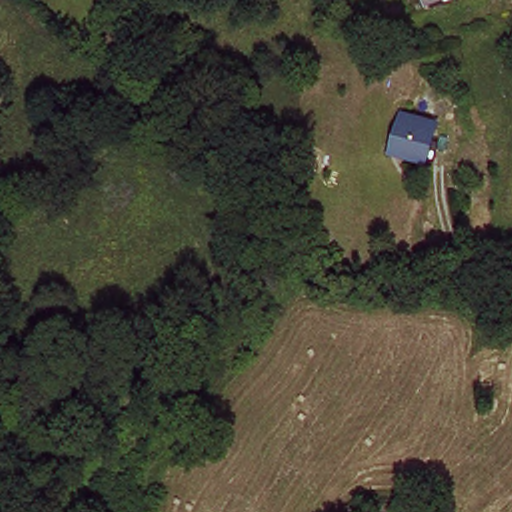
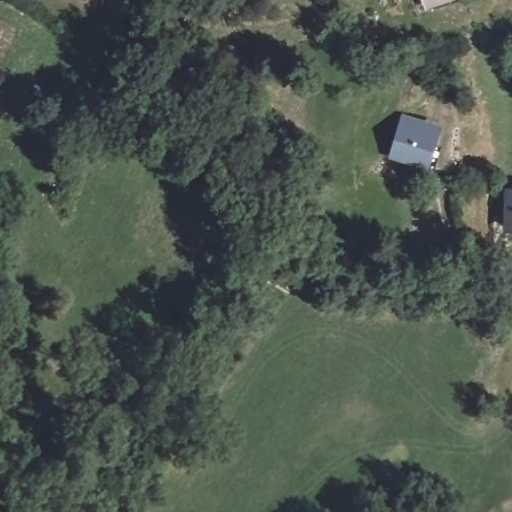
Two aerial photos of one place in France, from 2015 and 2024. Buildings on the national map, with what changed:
unchanged [(389,152),(397,122),(409,125),(432,131),(423,161),(413,159),(389,152)]
new [(512,187),(512,234),(503,233),(503,187),(512,187)]

